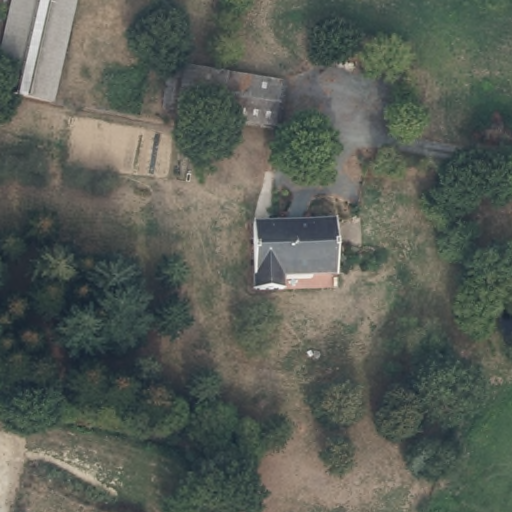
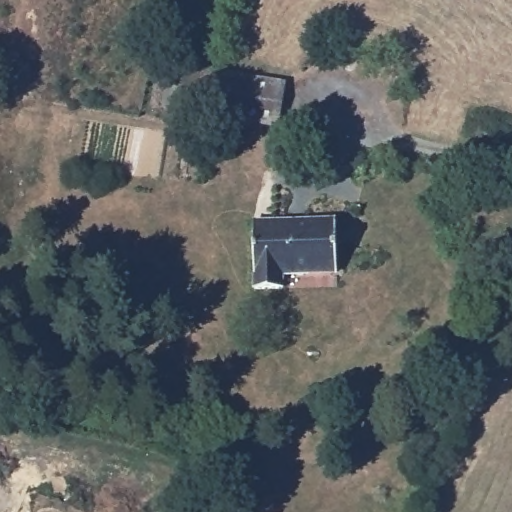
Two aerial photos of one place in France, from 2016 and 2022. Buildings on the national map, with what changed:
demolished [(0,50),(11,0),(79,0),(59,98),(0,86),(0,50)]
unchanged [(178,66),(278,81),(270,126),(172,111),(178,66)]
unchanged [(332,219),(334,271),(280,273),(280,288),(253,289),(249,222),(332,219)]

